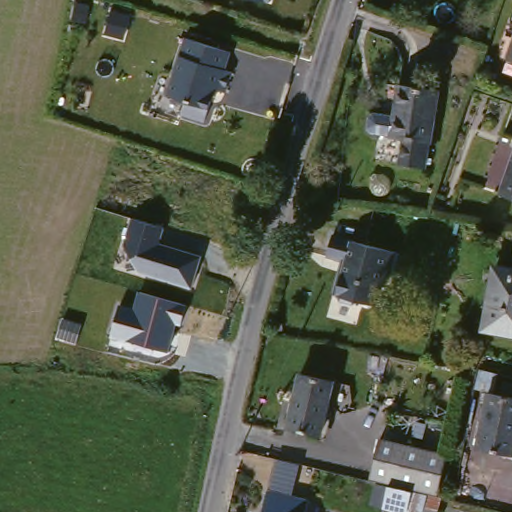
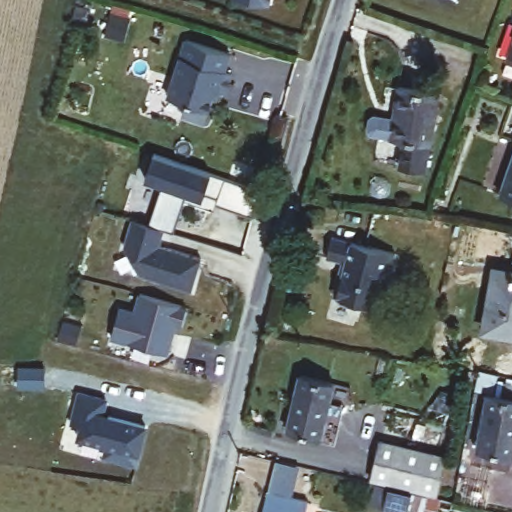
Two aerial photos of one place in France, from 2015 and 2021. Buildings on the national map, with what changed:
unchanged [(254,0),(272,0),(271,3),(254,0)]
unchanged [(230,56),(210,124),(177,116),(180,106),(165,101),(184,40),(230,56)]
unchanged [(512,43),(512,62),(506,60),(512,43)]
unchanged [(439,91),(427,169),(398,164),(402,139),(390,137),(397,85),(439,91)]
new [(261,189),(253,213),(214,201),(216,195),(205,192),(204,198),(186,193),(174,231),(165,229),(150,224),(162,185),(145,180),(154,153),(261,189)]
unchanged [(512,159),(512,200),(499,196),(512,159)]
unchanged [(192,289),(140,275),(126,244),(132,219),(165,229),(160,245),(201,258),(192,289)]
unchanged [(336,261),(321,257),(327,236),(390,254),(380,288),(373,286),(368,307),(352,302),(346,306),(335,303),(331,296),(327,295),(336,261)]
unchanged [(512,335),(483,330),(494,269),(512,272),(512,335)]
unchanged [(180,327),(174,326),(167,353),(112,339),(120,305),(131,308),(136,291),(185,305),(180,327)]
unchanged [(332,383),(320,437),(286,429),(300,375),(332,383)]
unchanged [(500,402),(503,389),(512,390),(512,460),(477,454),(487,399),(500,402)]
new [(76,394),(104,401),(100,416),(144,426),(135,465),(102,457),(105,446),(75,439),(78,427),(69,425),(76,394)]
unchanged [(369,475),(378,435),(446,452),(436,491),(427,489),(369,475)]
unchanged [(296,473),(290,498),(271,493),(278,468),(296,473)]
unchanged [(406,504),(405,511),(382,505),(388,483),(390,483),(426,492),(440,495),(435,512),(421,512),(422,508),(406,504)]
unchanged [(267,497),(306,507),(305,510),(314,512),(263,512),(267,497)]

